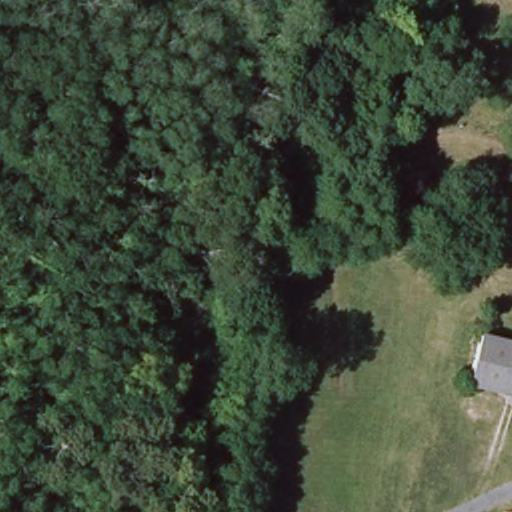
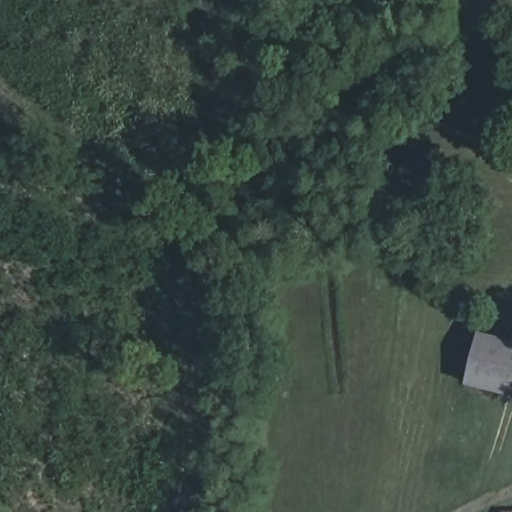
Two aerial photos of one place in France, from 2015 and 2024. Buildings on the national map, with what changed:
unchanged [(512,344),(512,399),(463,387),(473,335),(512,344)]

